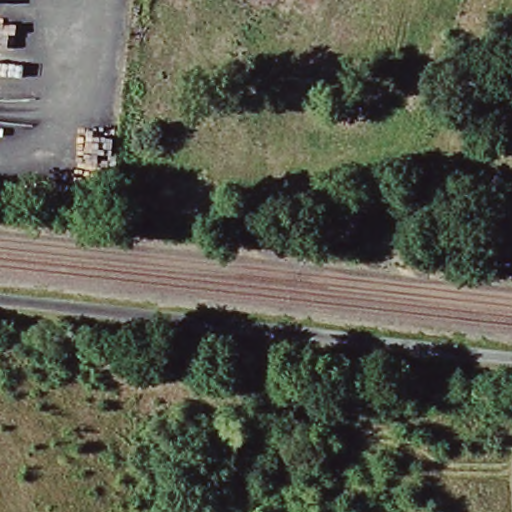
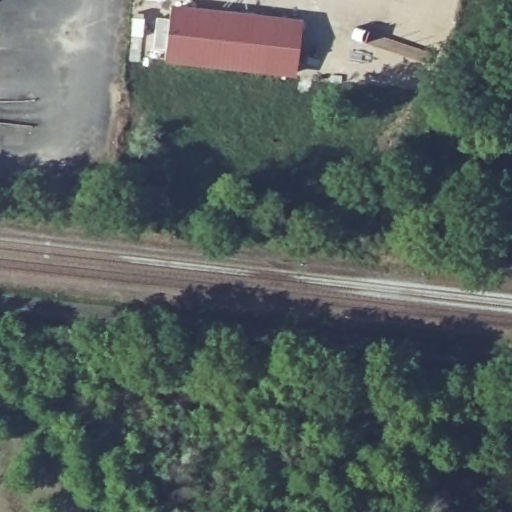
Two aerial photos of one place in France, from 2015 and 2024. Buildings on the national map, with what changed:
new [(169,10),(269,21),(263,72),(163,61),(169,10)]
new [(269,21),(293,23),(288,74),(263,72),(269,21)]

